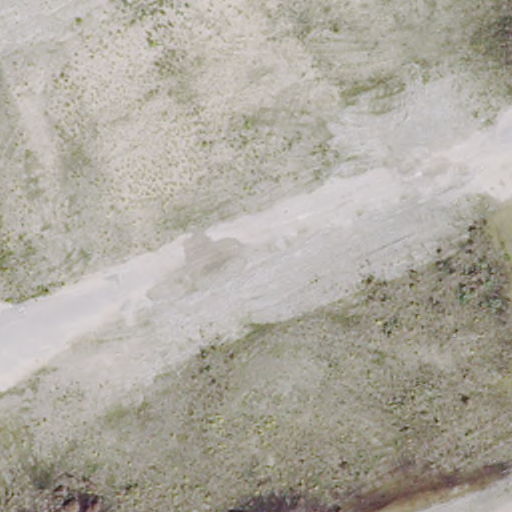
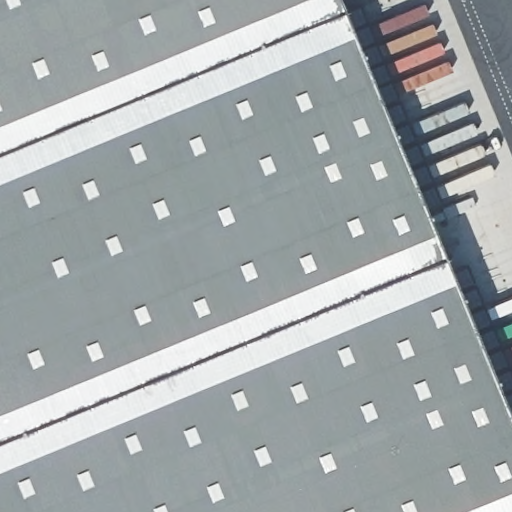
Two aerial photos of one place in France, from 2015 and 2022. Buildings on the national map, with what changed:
demolished [(0,274),(0,64),(156,0),(298,0),(357,143),(308,163),(311,171),(275,186),(271,177),(222,197),(226,206),(9,295),(0,274)]
new [(512,249),(512,512),(0,512),(0,0),(406,0),(512,249)]

